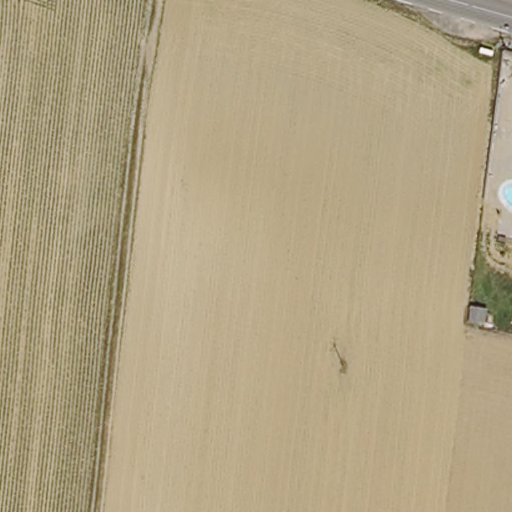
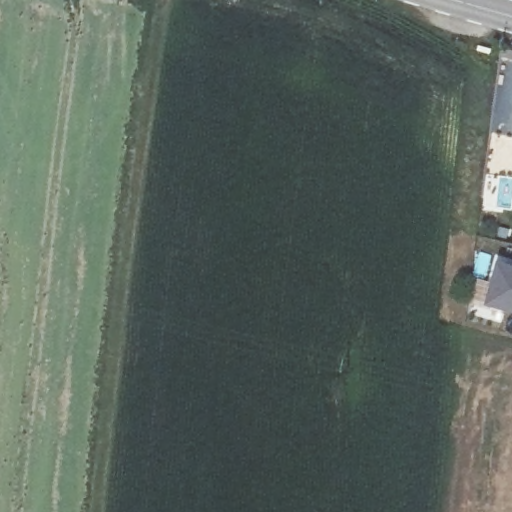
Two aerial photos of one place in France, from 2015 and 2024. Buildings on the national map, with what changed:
new [(512,267),(512,314),(489,307),(502,264),(512,267)]

